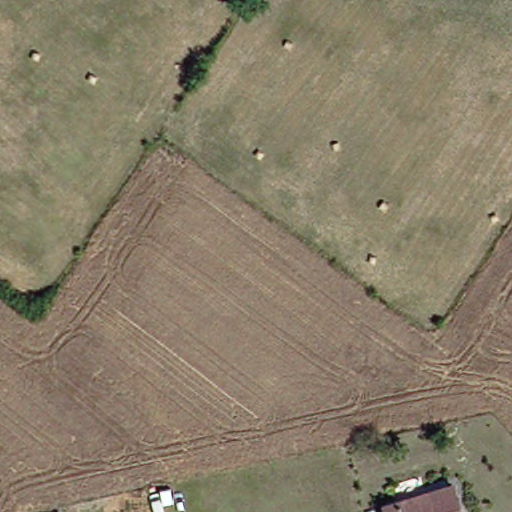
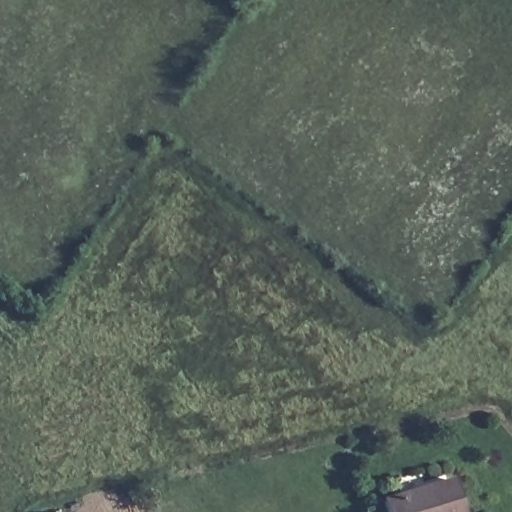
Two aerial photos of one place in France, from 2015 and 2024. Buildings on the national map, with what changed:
unchanged [(450,512),(376,512),(375,506),(444,488),(450,512)]

